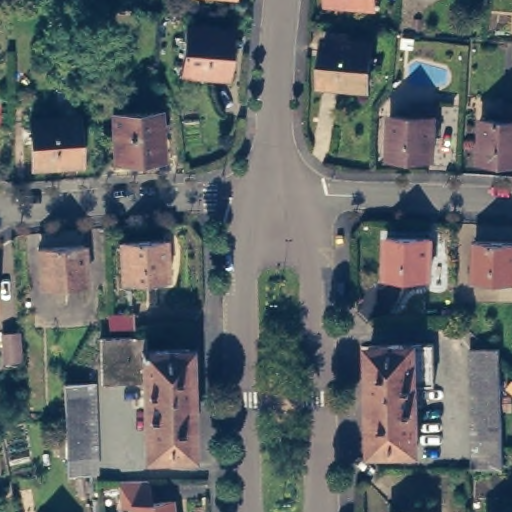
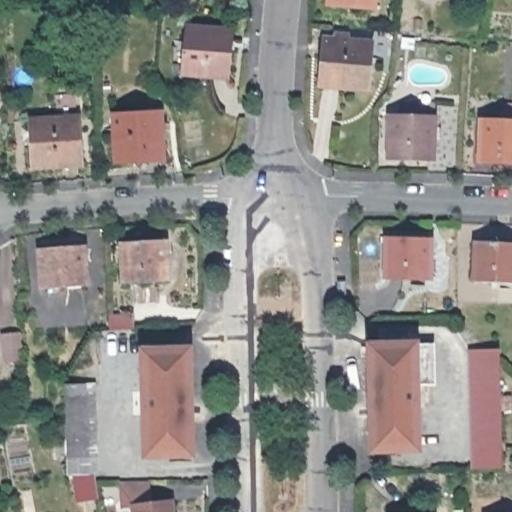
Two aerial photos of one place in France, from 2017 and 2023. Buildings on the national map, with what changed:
unchanged [(377,12),(328,8),(329,0),(377,0),(377,12)]
unchanged [(182,68),(187,21),(235,25),(230,72),(182,68)]
unchanged [(370,89),(322,85),(325,38),(374,42),(370,89)]
unchanged [(390,157),(392,116),(410,117),(411,103),(435,104),(435,117),(434,158),(390,157)]
unchanged [(487,120),(509,121),(509,104),(512,105),(512,162),(485,161),(487,120)]
unchanged [(170,154),(122,157),(120,109),(167,106),(170,154)]
unchanged [(75,112),(77,159),(30,162),(27,115),(75,112)]
unchanged [(174,275),(130,278),(128,237),(172,235),(174,275)]
unchanged [(431,279),(387,278),(388,237),(432,238),(431,279)]
unchanged [(87,249),(87,256),(81,256),(82,280),(39,284),(36,243),(80,240),(80,249),(87,249)]
unchanged [(477,240),(512,242),(512,283),(475,281),(477,240)]
unchanged [(110,314),(135,314),(135,329),(110,329),(110,314)]
unchanged [(102,338),(147,336),(147,350),(190,349),(192,454),(147,455),(145,382),(103,383),(102,338)]
unchanged [(377,446),(372,340),(435,338),(436,379),(418,379),(422,446),(377,446)]
unchanged [(499,462),(470,463),(466,345),(485,344),(495,344),(496,352),(499,462)]
unchanged [(65,385),(95,383),(99,473),(83,473),(69,474),(67,417),(65,385)]

